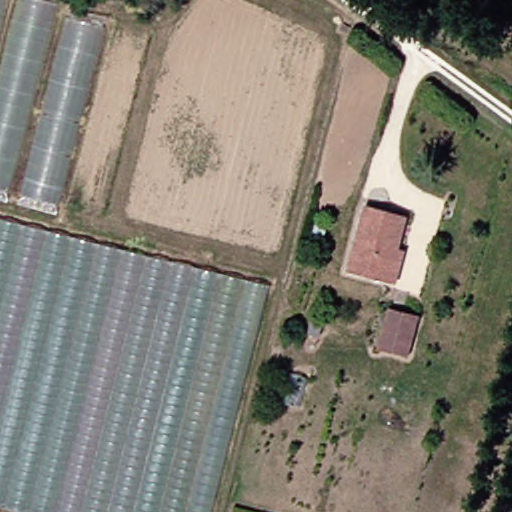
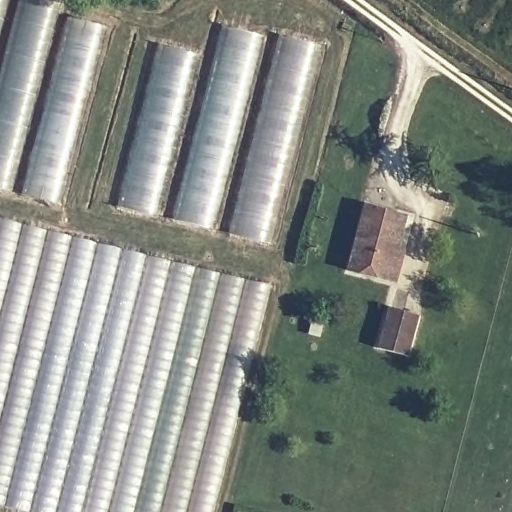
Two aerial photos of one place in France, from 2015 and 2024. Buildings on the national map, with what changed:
unchanged [(109,23),(61,207),(0,193),(0,0),(23,0),(109,23)]
new [(156,43),(215,58),(222,25),(267,36),(268,32),(327,46),(270,245),(117,207),(156,43)]
unchanged [(413,216),(404,245),(411,247),(401,282),(351,268),(369,204),(413,216)]
unchanged [(273,284),(213,512),(26,512),(0,506),(0,220),(273,284)]
unchanged [(425,321),(414,359),(383,351),(394,312),(425,321)]

